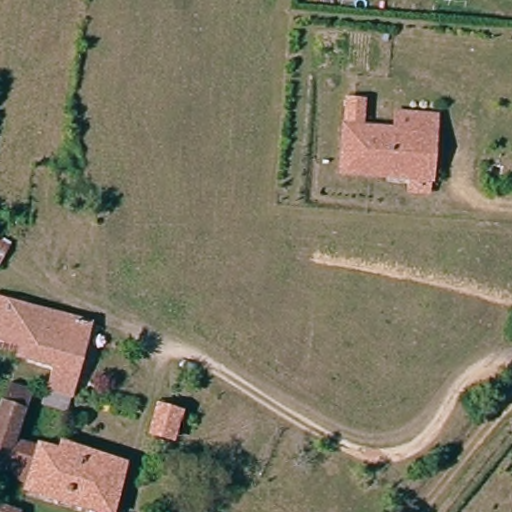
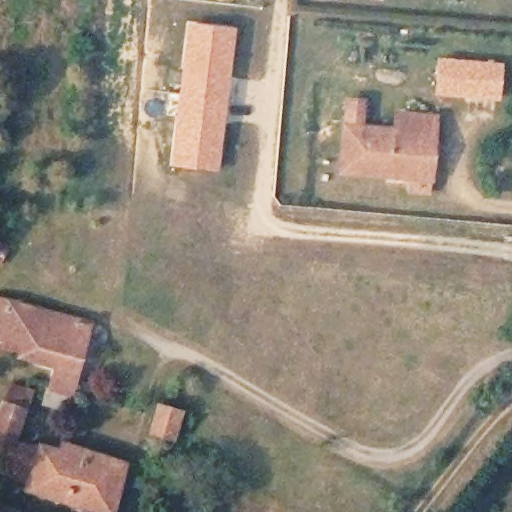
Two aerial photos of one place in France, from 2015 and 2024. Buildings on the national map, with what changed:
new [(187,21),(237,28),(219,173),(168,166),(187,21)]
new [(496,64),(494,93),(438,92),(440,61),(496,64)]
unchanged [(417,175),(341,168),(346,124),(396,128),(398,111),(435,115),(434,133),(429,176),(417,175)]
unchanged [(93,324),(76,401),(71,420),(48,415),(58,373),(11,361),(14,353),(0,348),(0,327),(0,300),(93,324)]
unchanged [(30,477),(0,465),(0,406),(31,415),(25,436),(40,439),(38,445),(33,467),(30,477)]
unchanged [(159,433),(161,424),(163,416),(165,409),(179,413),(176,429),(174,437),(159,433)]
unchanged [(66,444),(137,462),(129,491),(33,467),(38,445),(64,453),(66,444)]
unchanged [(26,497),(30,477),(33,467),(129,491),(123,512),(100,512),(26,497)]
unchanged [(3,499),(28,505),(26,512),(0,512),(0,498),(3,499)]

